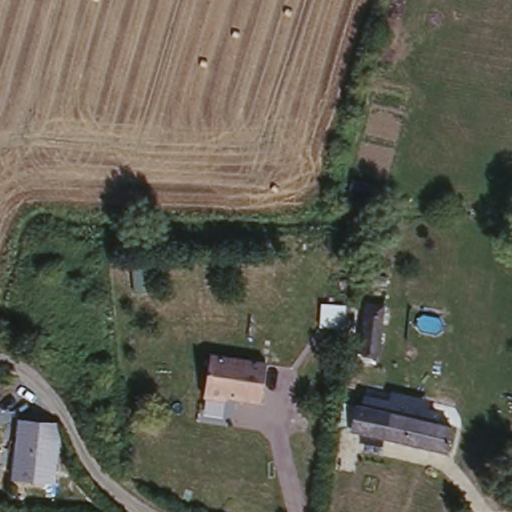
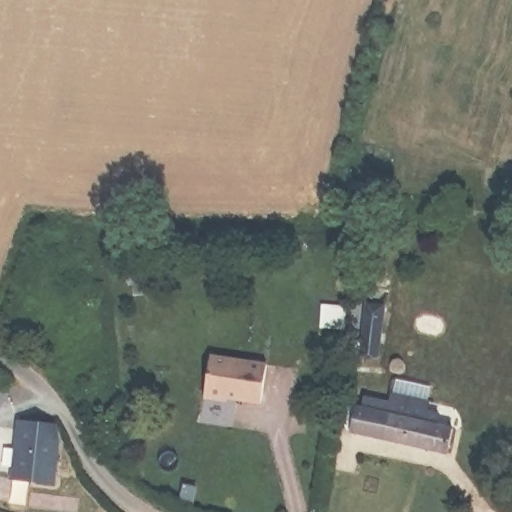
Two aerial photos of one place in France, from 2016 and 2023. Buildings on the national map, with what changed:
unchanged [(381,356),(358,352),(360,341),(370,339),(376,304),(392,307),(381,356)]
unchanged [(265,366),(257,404),(223,396),(222,400),(202,395),(212,354),(265,366)]
unchanged [(352,435),(357,409),(362,410),(364,400),(438,413),(436,423),(453,426),(449,452),(352,435)]
unchanged [(59,486),(31,484),(32,474),(17,473),(22,419),(37,419),(61,421),(59,486)]

